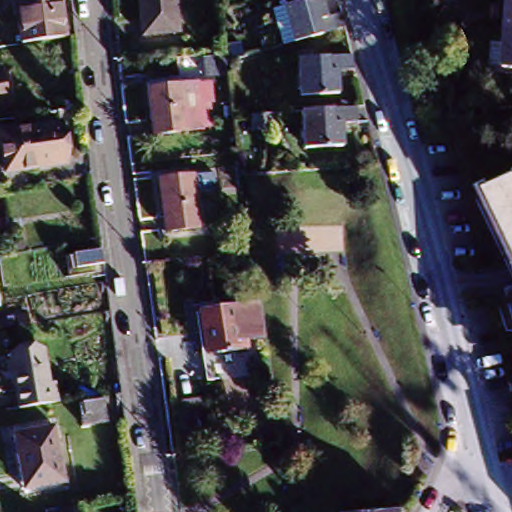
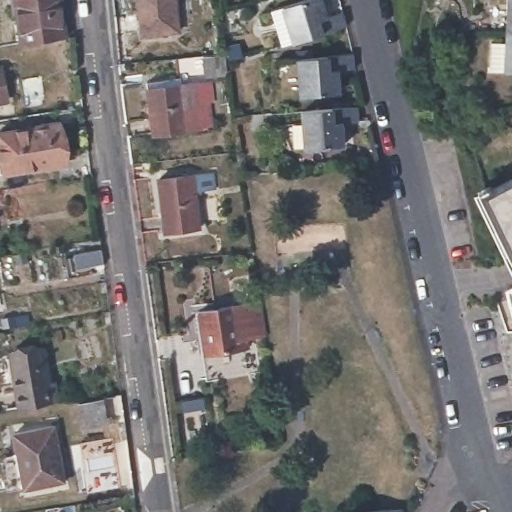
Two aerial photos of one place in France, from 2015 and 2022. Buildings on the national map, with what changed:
unchanged [(14,0),(57,0),(60,35),(19,41),(14,0)]
unchanged [(143,35),(140,0),(177,0),(180,32),(143,35)]
unchanged [(310,0),(318,0),(322,19),(340,13),(341,17),(344,29),(289,45),(278,9),(310,0)]
unchanged [(506,0),(512,0),(512,32),(504,32),(506,0)]
unchanged [(504,32),(512,32),(512,69),(501,69),(504,32)]
unchanged [(350,72),(335,74),(337,95),(297,97),(294,61),(348,57),(350,72)]
unchanged [(215,77),(195,80),(193,65),(213,62),(215,77)]
unchanged [(7,104),(0,104),(0,71),(1,71),(7,104)]
unchanged [(193,91),(206,89),(207,107),(204,108),(206,131),(197,132),(197,135),(147,140),(143,101),(143,93),(142,87),(176,83),(177,90),(193,89),(193,91)]
unchanged [(354,109),(355,122),(340,124),(340,147),(301,149),(300,113),(354,109)]
unchanged [(37,166),(1,172),(0,162),(0,129),(57,122),(62,156),(63,162),(37,166)]
unchanged [(211,189),(191,191),(195,229),(160,232),(153,180),(209,174),(211,189)]
unchanged [(512,250),(487,192),(512,181),(512,250)]
unchanged [(105,259),(105,262),(78,267),(76,253),(103,249),(105,259)]
unchanged [(230,347),(195,352),(190,310),(237,302),(250,300),(250,305),(255,332),(255,333),(241,335),(229,337),(230,347)]
unchanged [(195,352),(230,347),(243,345),(247,372),(200,380),(195,352)]
unchanged [(39,347),(44,382),(50,381),(53,398),(15,405),(5,352),(39,347)]
unchanged [(107,412),(101,412),(102,421),(82,424),(78,402),(105,397),(107,412)]
unchanged [(185,400),(206,397),(207,406),(186,409),(185,400)]
unchanged [(60,486),(24,492),(18,458),(15,459),(11,439),(50,431),(60,486)]

